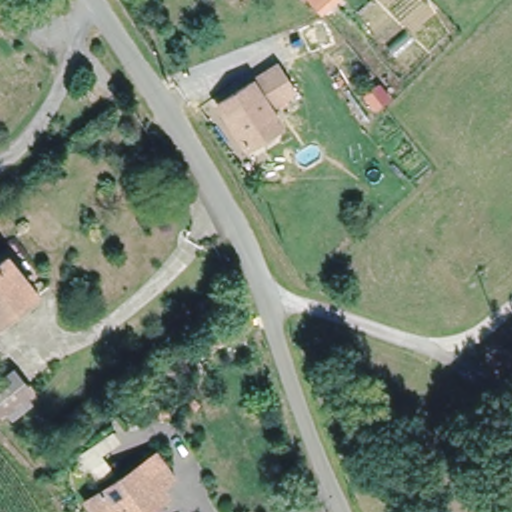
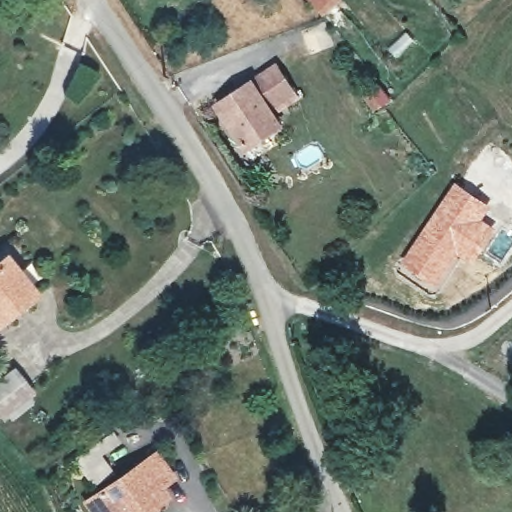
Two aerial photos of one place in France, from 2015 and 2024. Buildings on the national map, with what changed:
unchanged [(323,17),(309,0),(342,0),(323,17)]
unchanged [(295,91),(270,108),(282,126),(280,127),(279,126),(249,146),(250,147),(248,148),(220,106),(278,66),(295,91)]
new [(493,204),(484,218),(498,226),(473,264),(459,257),(439,285),(402,262),(457,181),(493,204)]
unchanged [(12,257),(40,291),(0,324),(0,267),(12,257)]
new [(29,395),(34,402),(13,419),(8,413),(0,419),(0,377),(15,364),(36,390),(29,395)]
unchanged [(167,478),(152,487),(159,493),(133,512),(105,512),(92,493),(150,453),(167,478)]

